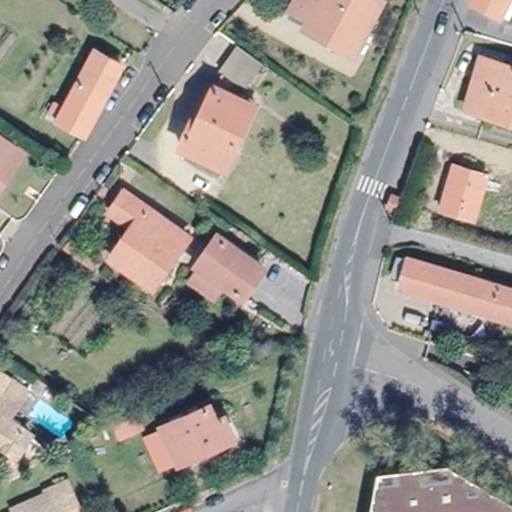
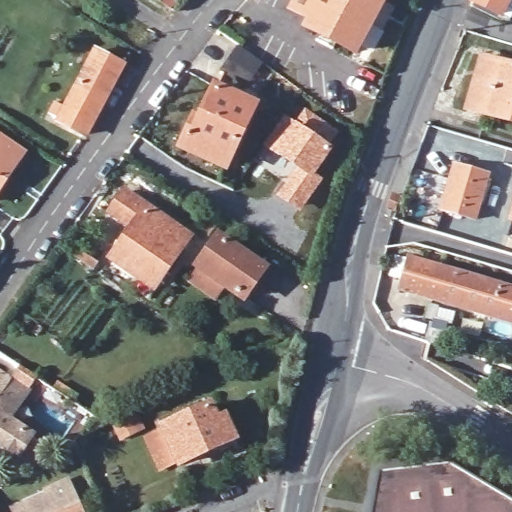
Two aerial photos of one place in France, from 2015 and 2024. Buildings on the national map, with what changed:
unchanged [(302,29),(306,21),(287,11),(293,0),(378,0),(380,1),(376,10),(352,55),(302,29)]
unchanged [(495,11),(473,0),(500,0),(495,11)]
unchanged [(241,90),(217,73),(235,47),(260,64),(241,90)]
unchanged [(92,54),(116,67),(79,137),(56,124),(92,54)]
unchanged [(457,109),(472,57),(512,70),(512,126),(457,109)]
unchanged [(182,152),(177,150),(190,120),(197,123),(206,100),(211,90),(255,108),(247,127),(232,163),(228,171),(182,152)]
new [(294,120),(304,107),(341,132),(333,147),(316,175),(322,180),(301,212),(273,194),(293,167),(263,147),(284,115),(294,120)]
unchanged [(24,154),(9,176),(0,189),(0,138),(17,150),(24,154)]
unchanged [(455,165),(487,175),(475,219),(442,209),(455,165)]
unchanged [(132,222),(111,207),(123,189),(186,232),(154,281),(114,253),(132,222)]
unchanged [(400,197),(394,211),(387,208),(392,194),(400,197)]
new [(507,222),(512,204),(512,224),(507,222)]
unchanged [(189,279),(200,263),(198,262),(217,233),(262,264),(242,292),(224,280),(213,295),(189,279)]
unchanged [(400,288),(402,279),(393,276),(398,257),(512,291),(512,321),(400,288)]
unchanged [(0,390),(1,390),(17,401),(0,426),(0,390)]
unchanged [(182,470),(167,433),(216,413),(222,428),(229,425),(239,447),(219,455),(182,470)]
unchanged [(7,467),(0,463),(0,432),(22,446),(7,467)]
unchanged [(448,469),(512,507),(512,512),(371,512),(378,477),(448,469)]
unchanged [(39,490),(59,481),(70,512),(25,512),(45,504),(39,490)]

